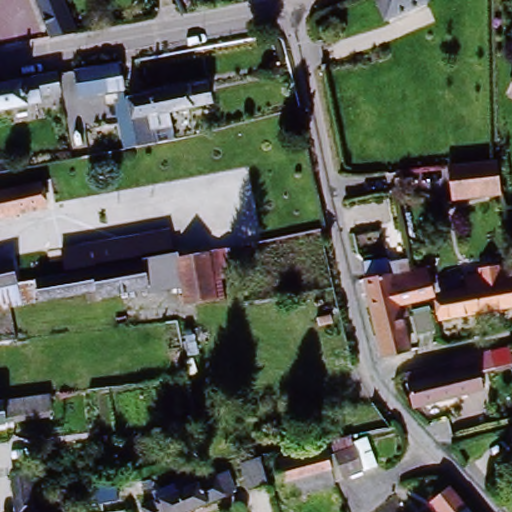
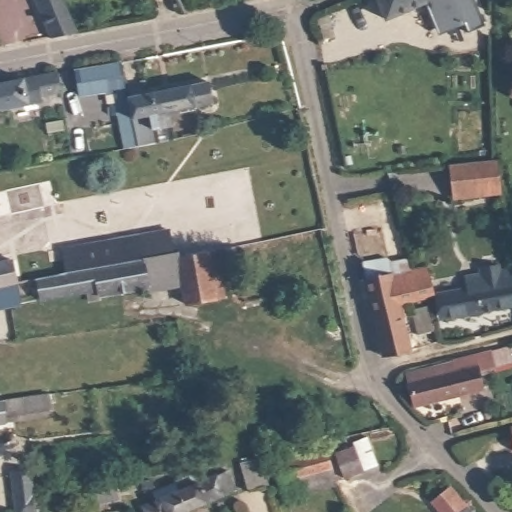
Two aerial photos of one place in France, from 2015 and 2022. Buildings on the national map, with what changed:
unchanged [(75,33),(53,37),(39,0),(61,0),(75,33)]
unchanged [(386,19),(379,0),(426,0),(426,1),(386,19)]
new [(486,27),(470,35),(465,25),(440,37),(426,1),(426,0),(474,0),(486,27)]
unchanged [(120,64),(123,89),(80,95),(76,70),(120,64)]
unchanged [(55,92),(40,95),(40,100),(33,101),(15,104),(0,106),(0,82),(52,74),(55,92)]
unchanged [(133,117),(129,96),(208,82),(212,102),(168,111),(173,137),(151,141),(137,144),(133,117)]
unchanged [(495,162),(497,195),(451,200),(446,167),(495,162)]
unchanged [(42,189),(46,206),(0,216),(0,191),(41,182),(42,189)]
unchanged [(99,293),(42,303),(41,300),(33,300),(30,283),(36,282),(33,266),(65,260),(63,252),(168,234),(170,240),(173,258),(179,257),(183,285),(100,298),(99,293)]
unchanged [(239,275),(222,278),(217,250),(235,247),(239,275)]
unchanged [(216,301),(187,307),(183,285),(179,257),(208,252),(216,301)]
unchanged [(17,285),(0,290),(0,267),(11,264),(17,285)]
unchanged [(384,360),(361,267),(389,264),(390,267),(408,265),(408,267),(410,274),(423,271),(430,300),(407,305),(399,307),(410,355),(399,357),(384,360)]
unchanged [(440,298),(470,292),(468,283),(484,280),(483,275),(501,271),(502,276),(512,274),(512,310),(445,323),(442,310),(440,298)]
unchanged [(0,311),(0,290),(17,285),(23,305),(0,311)]
unchanged [(190,378),(173,380),(167,338),(165,323),(180,321),(190,378)]
unchanged [(450,367),(470,361),(485,358),(488,371),(475,375),(479,391),(409,409),(403,387),(452,375),(450,367)]
unchanged [(48,412),(13,417),(14,423),(0,425),(0,402),(45,396),(48,412)]
unchanged [(510,437),(512,437),(512,443),(510,437)]
unchanged [(336,455),(356,447),(355,444),(367,440),(378,469),(345,481),(336,455)]
unchanged [(287,498),(276,460),(325,445),(331,468),(336,485),(287,498)]
unchanged [(265,483),(250,487),(245,462),(258,458),(265,483)]
unchanged [(31,468),(36,512),(17,512),(13,470),(31,468)]
unchanged [(180,495),(175,486),(196,477),(200,486),(229,474),(237,491),(189,512),(144,512),(143,510),(180,495)]
unchanged [(144,486),(143,478),(153,477),(153,485),(144,486)]
unchanged [(96,487),(116,482),(118,500),(97,503),(96,487)]
unchanged [(450,486),(470,512),(446,512),(435,497),(450,486)]

